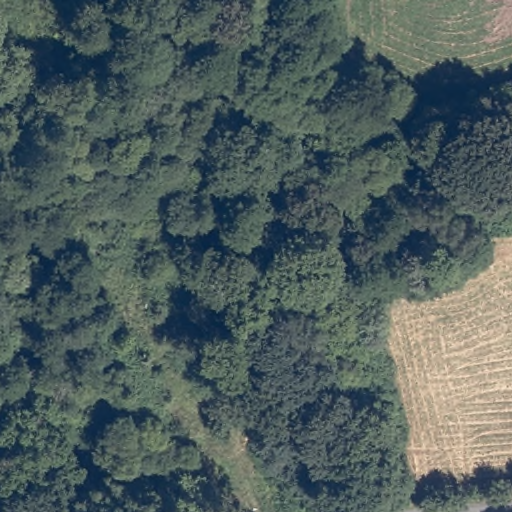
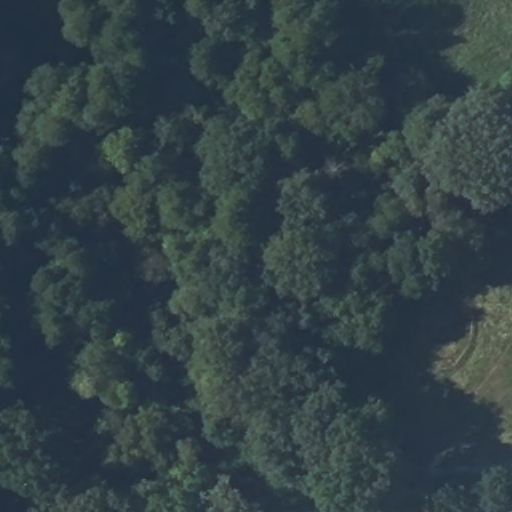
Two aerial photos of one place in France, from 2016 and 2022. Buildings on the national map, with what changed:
[]

